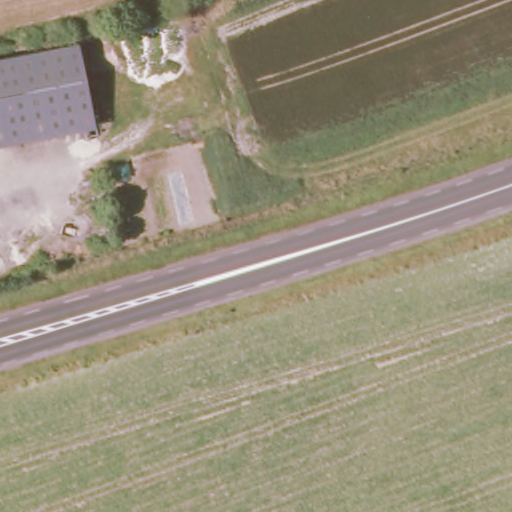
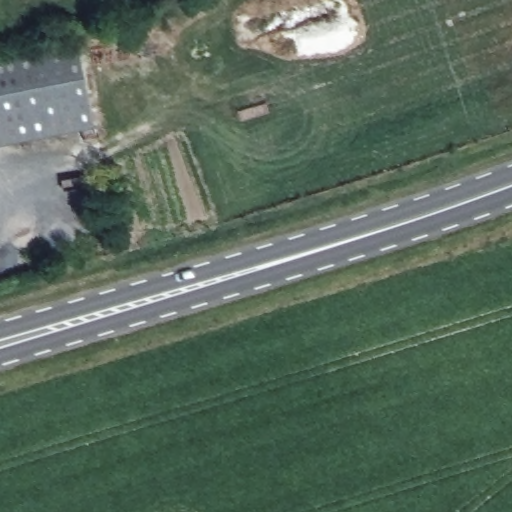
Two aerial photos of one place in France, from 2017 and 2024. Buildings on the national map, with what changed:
unchanged [(93,132),(0,148),(0,56),(76,43),(93,132)]

